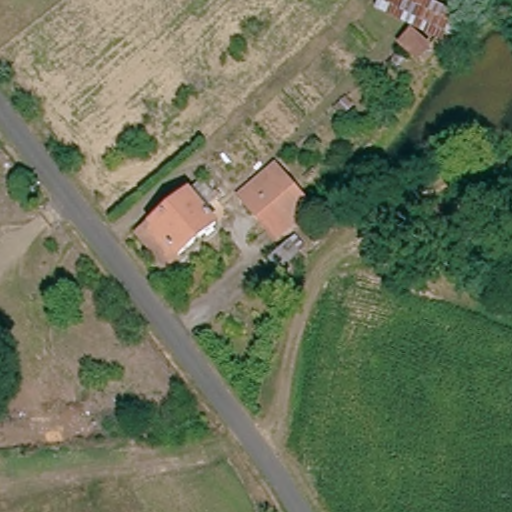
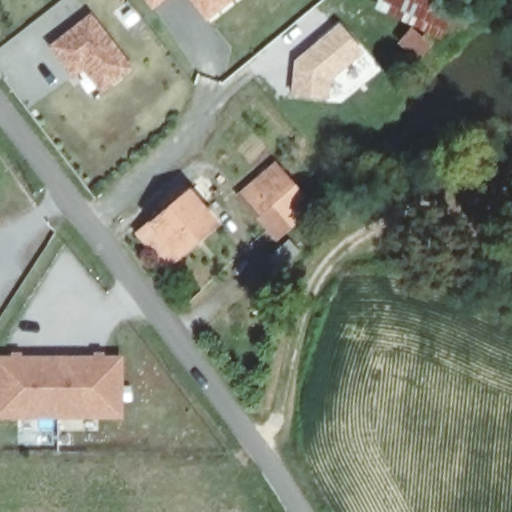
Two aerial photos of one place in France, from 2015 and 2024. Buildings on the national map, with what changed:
new [(144,0),(162,0),(151,8),(144,0)]
new [(190,0),(230,0),(206,19),(190,0)]
unchanged [(376,2),(377,0),(424,0),(451,14),(443,35),(376,2)]
new [(132,69),(100,93),(84,71),(74,78),(47,44),(91,12),(132,69)]
new [(293,59),(339,21),(364,51),(332,79),(328,102),(289,99),(293,59)]
unchanged [(412,56),(397,43),(406,33),(422,45),(412,56)]
unchanged [(272,239),(263,228),(243,203),(237,196),(262,177),(276,166),(298,195),(286,206),(297,219),(272,239)]
unchanged [(189,198),(198,191),(212,209),(203,217),(213,232),(174,263),(162,272),(136,238),(149,229),(189,198)]
unchanged [(274,267),(263,255),(285,237),(296,249),(274,267)]
new [(123,357),(122,419),(0,420),(0,357),(123,357)]
demolished [(75,406),(116,402),(116,426),(150,422),(152,449),(116,448),(117,439),(30,448),(29,401),(74,395),(75,406)]

